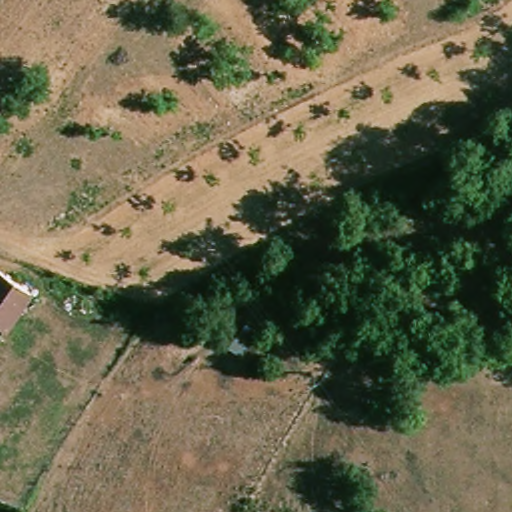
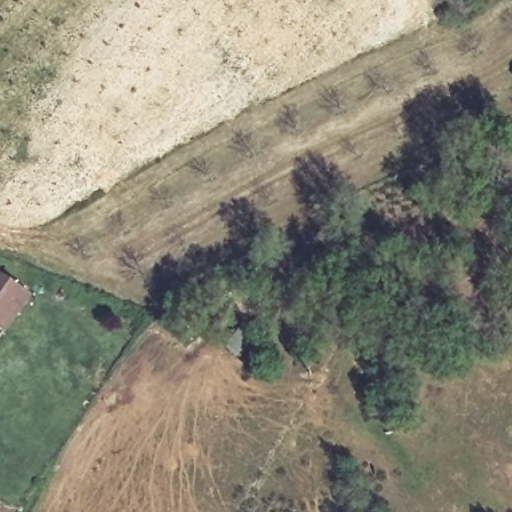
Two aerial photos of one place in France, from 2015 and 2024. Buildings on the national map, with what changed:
unchanged [(0,269),(38,295),(12,333),(0,325),(0,269)]

